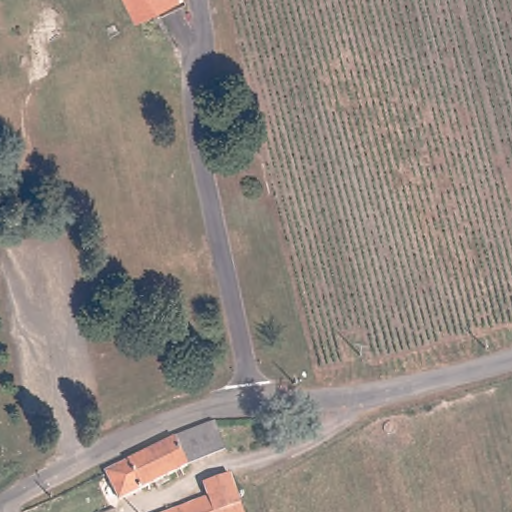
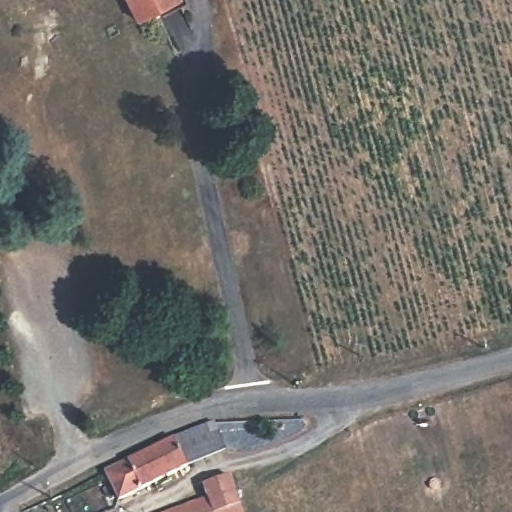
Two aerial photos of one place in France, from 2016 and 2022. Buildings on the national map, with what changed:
unchanged [(173,0),(140,16),(132,0),(173,0)]
unchanged [(104,472),(174,438),(214,422),(227,452),(189,467),(118,502),(104,472)]
unchanged [(207,497),(202,485),(230,474),(244,512),(166,512),(207,497)]

